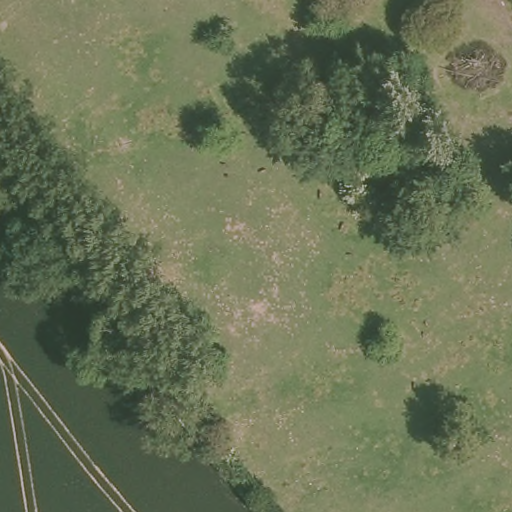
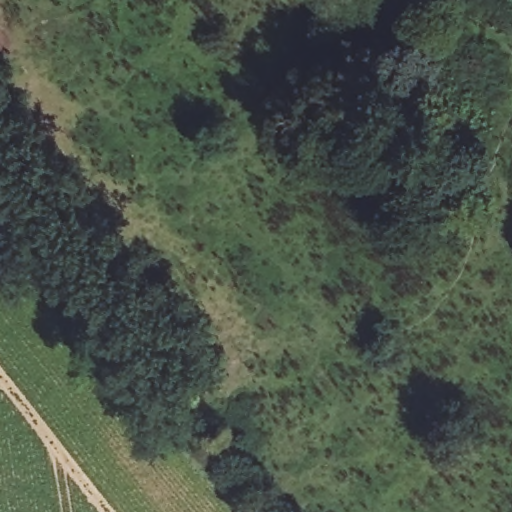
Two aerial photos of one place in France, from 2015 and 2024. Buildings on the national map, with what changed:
unchanged [(201,392),(227,424),(213,433),(209,436),(184,407),(189,402),(201,392)]

